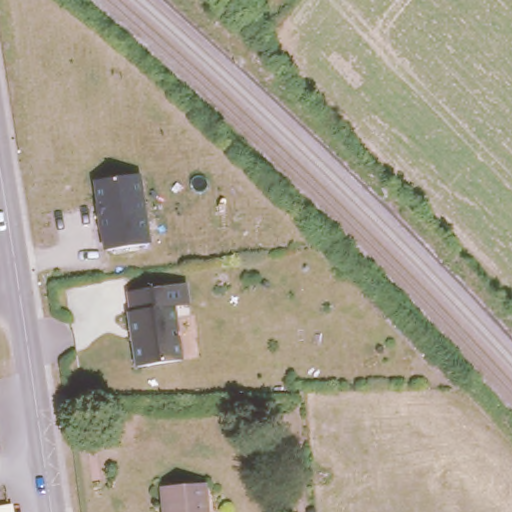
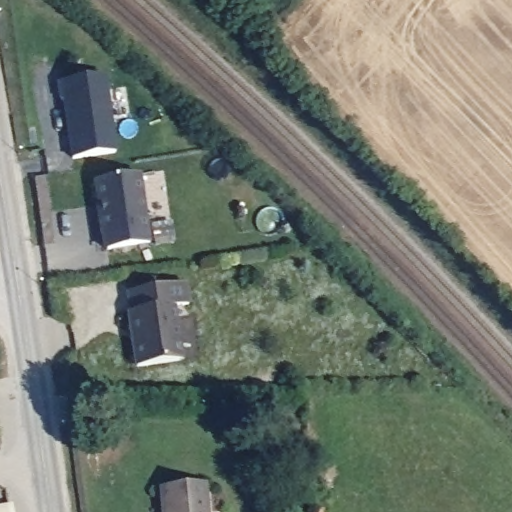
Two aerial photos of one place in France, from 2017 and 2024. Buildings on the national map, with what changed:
new [(112,156),(70,163),(60,104),(57,104),(55,86),(100,79),(112,156)]
unchanged [(104,250),(94,182),(139,175),(149,242),(104,250)]
unchanged [(185,281),(190,304),(173,308),(181,360),(135,366),(124,290),(185,281)]
unchanged [(202,483),(205,512),(165,512),(162,487),(202,483)]

